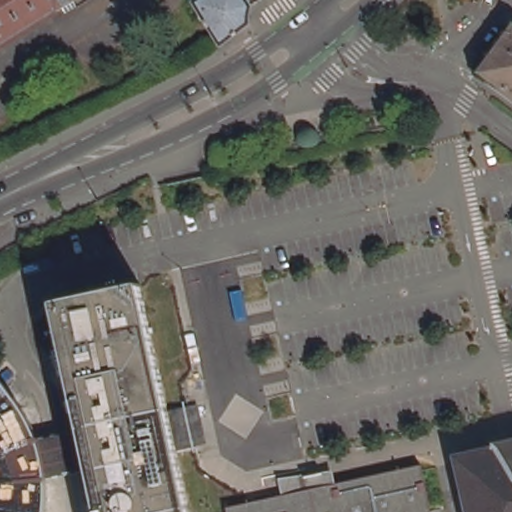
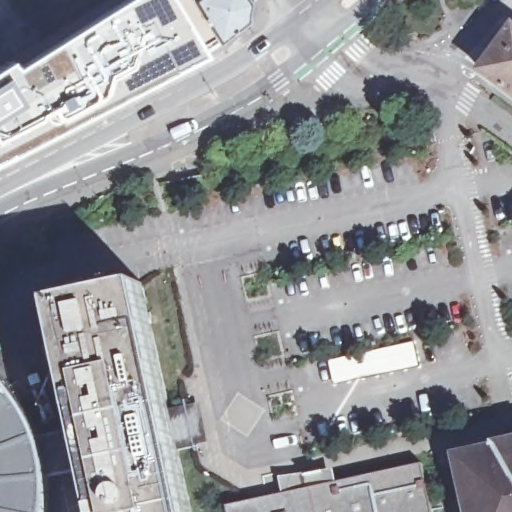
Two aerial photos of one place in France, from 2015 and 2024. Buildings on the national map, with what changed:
demolished [(62,3),(0,42),(0,0),(72,0),(64,5),(62,3)]
new [(16,62),(117,0),(174,0),(205,52),(141,86),(70,121),(0,159),(0,61),(11,55),(16,62)]
unchanged [(250,10),(252,19),(225,41),(201,0),(257,0),(250,10)]
unchanged [(484,66),(512,30),(512,86),(484,66)]
unchanged [(195,512),(105,512),(94,463),(92,453),(85,423),(57,297),(144,277),(195,512)]
unchanged [(47,454),(49,472),(50,505),(49,512),(0,512),(0,366),(28,403),(40,433),(47,454)]
unchanged [(85,423),(92,453),(94,463),(49,472),(47,454),(40,433),(85,423)]
unchanged [(476,512),(463,455),(504,446),(502,442),(512,440),(512,512),(476,512)]
unchanged [(425,458),(437,512),(231,512),(229,502),(425,458)]

